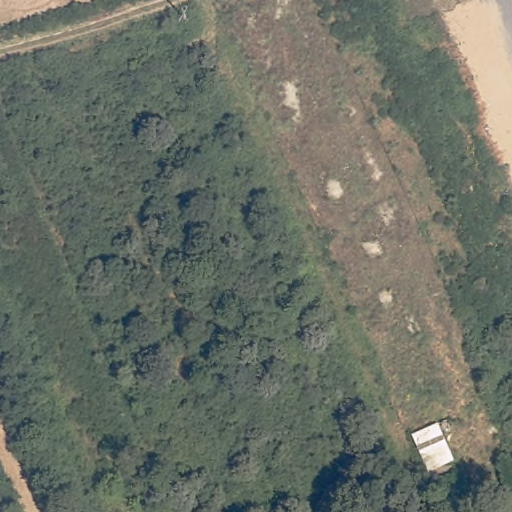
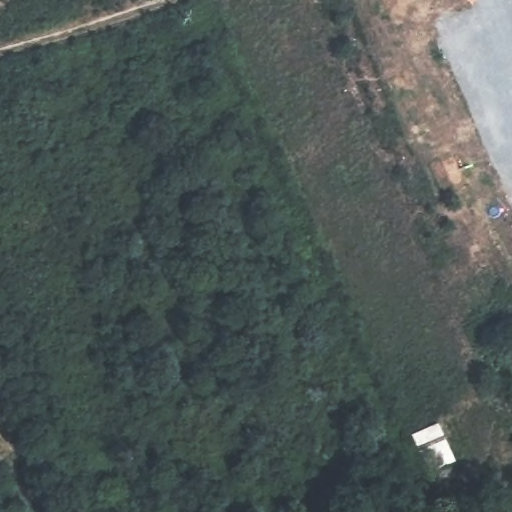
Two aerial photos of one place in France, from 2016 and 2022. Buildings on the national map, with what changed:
unchanged [(435,484),(427,467),(412,427),(438,417),(451,452),(456,474),(435,484)]

